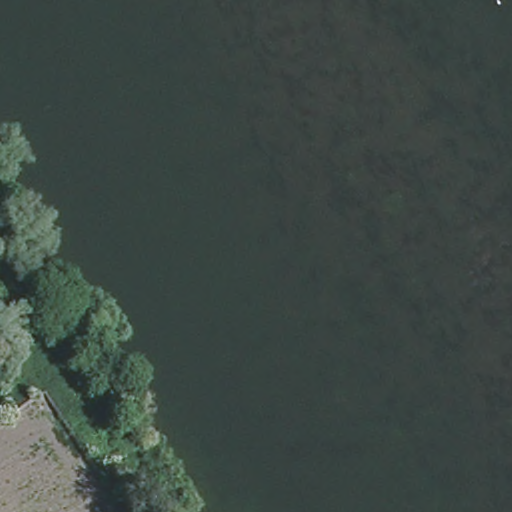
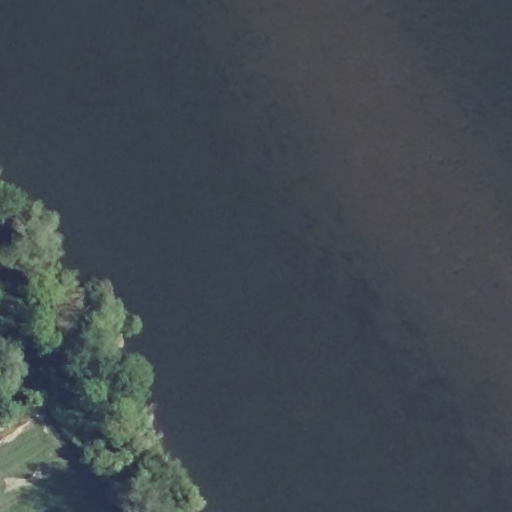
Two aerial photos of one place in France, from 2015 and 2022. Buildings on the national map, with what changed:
[]

